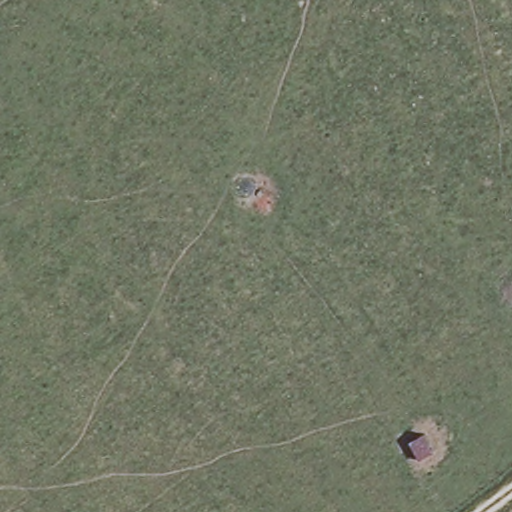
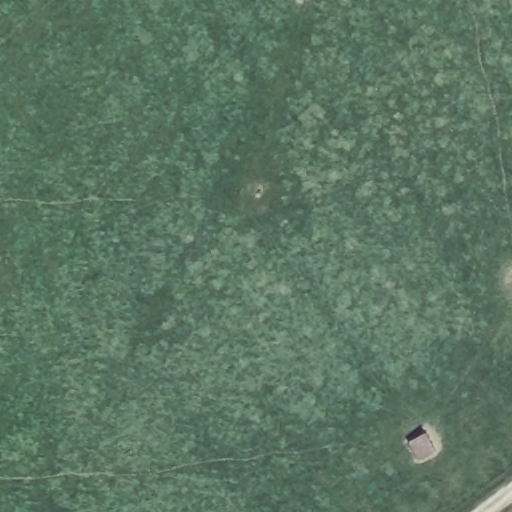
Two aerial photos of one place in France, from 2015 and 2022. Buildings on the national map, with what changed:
unchanged [(409,443),(427,433),(436,454),(417,462),(409,443)]

